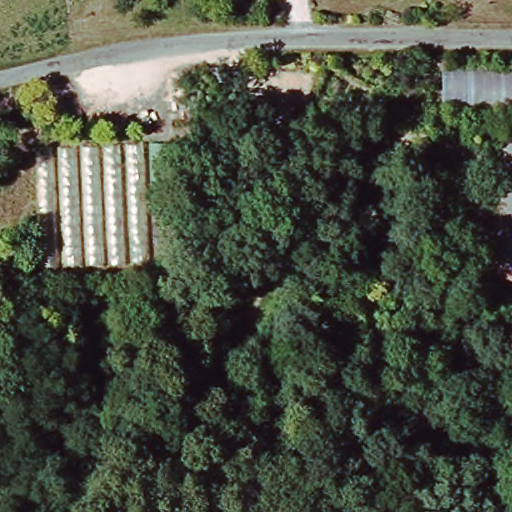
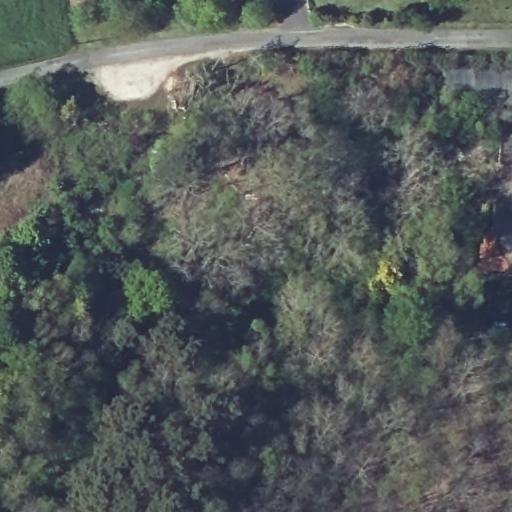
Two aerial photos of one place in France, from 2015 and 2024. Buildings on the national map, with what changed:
unchanged [(450,71),(512,72),(512,109),(451,109),(450,71)]
demolished [(46,267),(43,148),(150,146),(154,262),(46,267)]
unchanged [(512,255),(512,268),(511,268),(512,255)]

